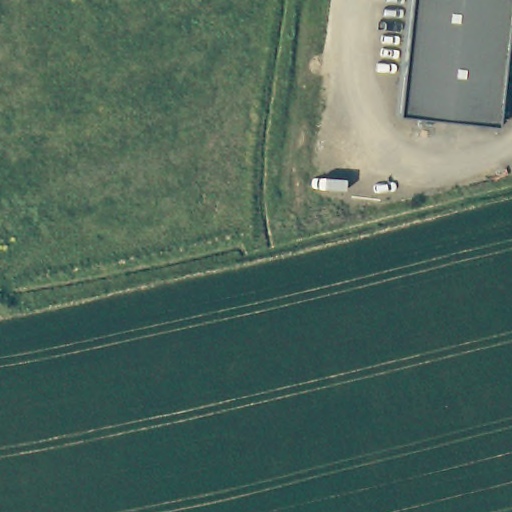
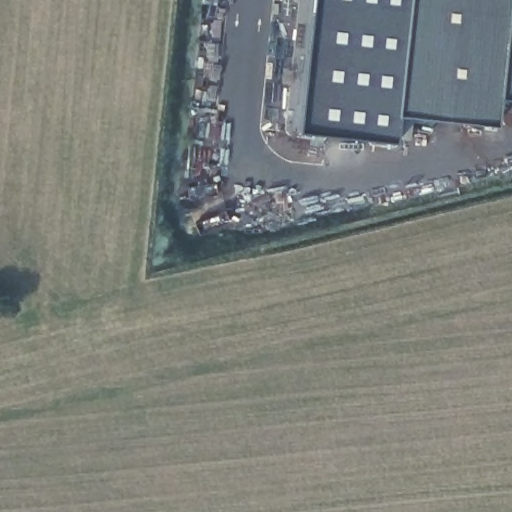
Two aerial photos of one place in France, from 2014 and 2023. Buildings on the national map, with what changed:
new [(394,143),(295,133),(311,0),(409,0),(397,116),(394,143)]
unchanged [(397,116),(409,0),(509,0),(495,125),(397,116)]
new [(512,0),(512,99),(498,98),(509,0),(512,0)]

